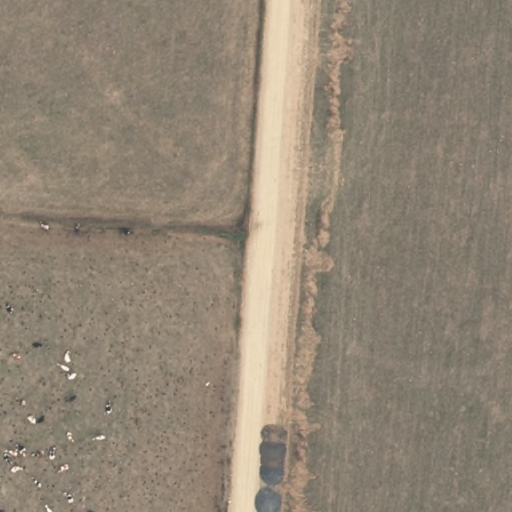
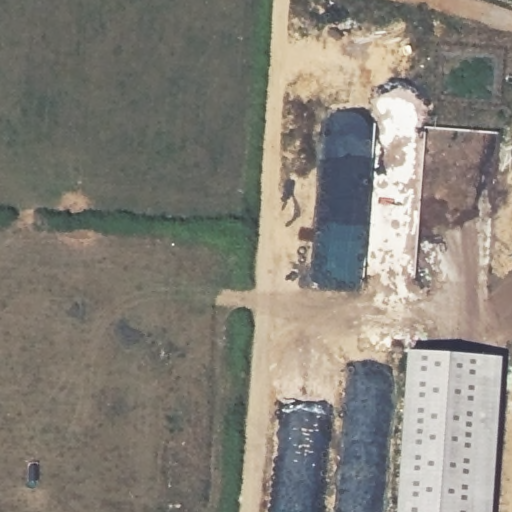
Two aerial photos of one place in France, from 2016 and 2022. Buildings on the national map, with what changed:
new [(502,356),(492,512),(396,512),(407,350),(502,356)]

